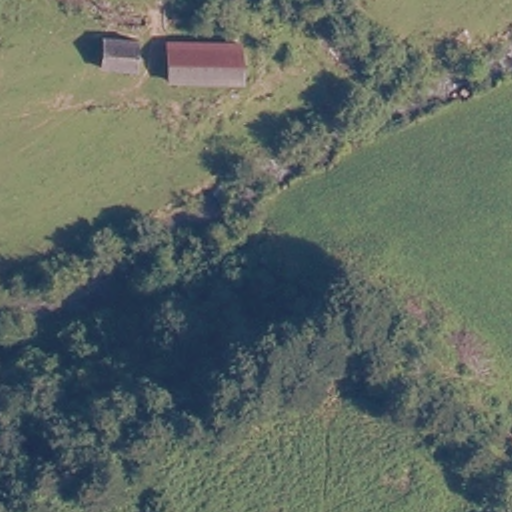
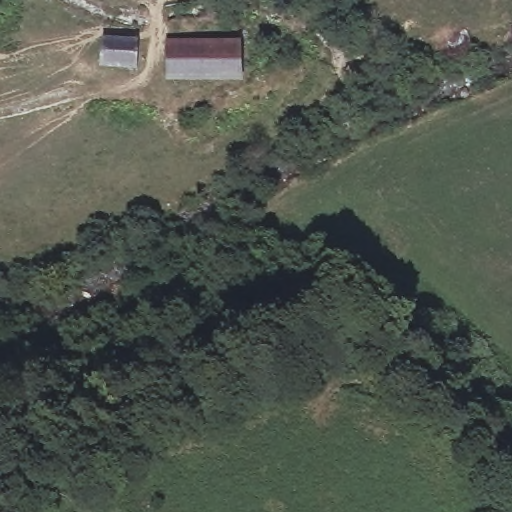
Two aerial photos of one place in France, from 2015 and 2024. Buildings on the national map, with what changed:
unchanged [(105,62),(108,32),(141,36),(140,65),(105,62)]
unchanged [(240,80),(170,76),(172,37),(239,41),(240,80)]

